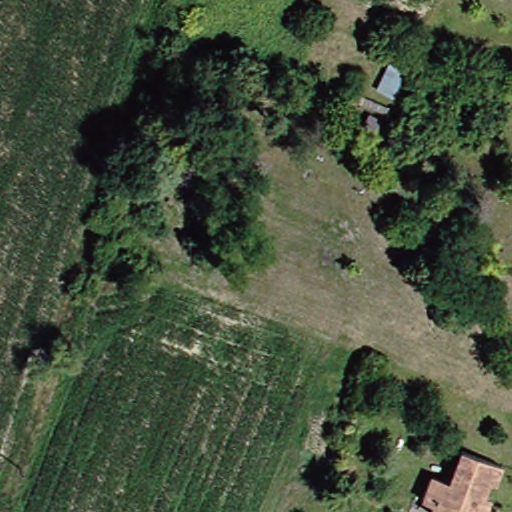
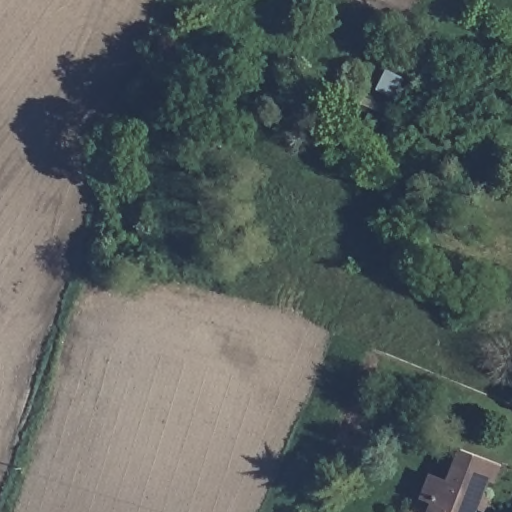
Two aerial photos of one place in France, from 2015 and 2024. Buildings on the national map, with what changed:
unchanged [(425,474),(445,481),(456,451),(496,467),(488,486),(481,484),(471,512),(427,512),(430,505),(415,498),(425,474)]

